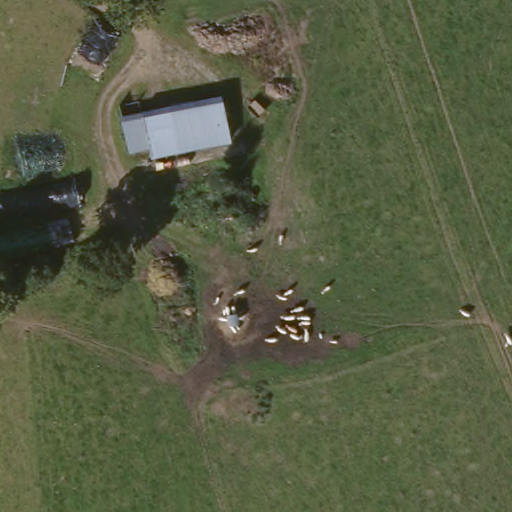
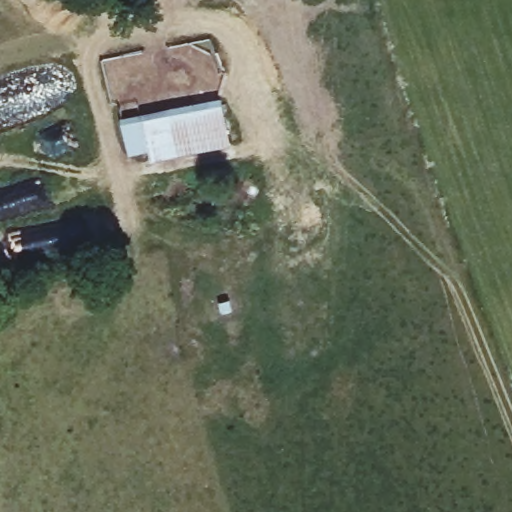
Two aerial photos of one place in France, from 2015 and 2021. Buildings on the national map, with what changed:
unchanged [(200,106),(229,100),(238,145),(208,151),(200,106)]
unchanged [(133,165),(129,155),(122,120),(200,106),(208,151),(133,165)]

